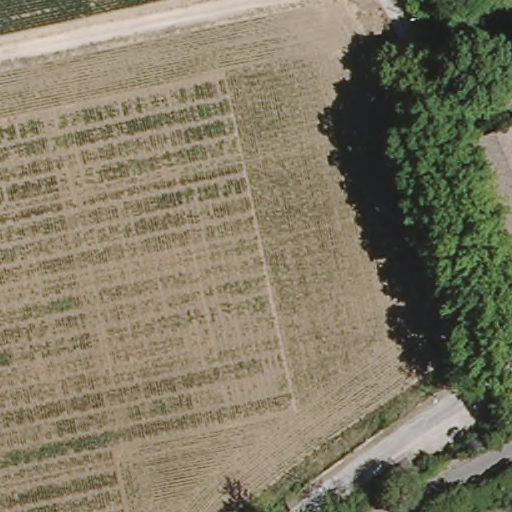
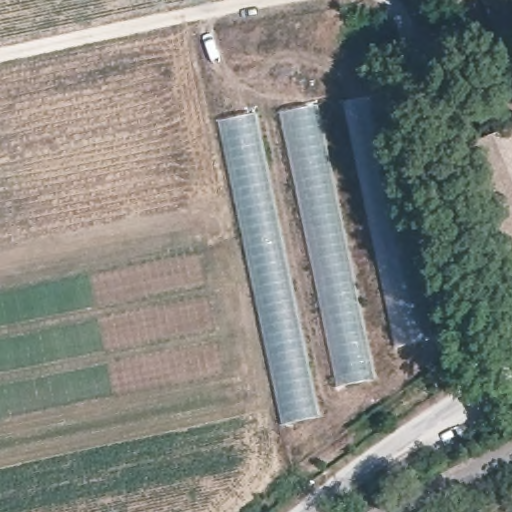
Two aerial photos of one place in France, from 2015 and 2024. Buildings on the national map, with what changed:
new [(380,97),(437,340),(397,347),(345,101),(380,97)]
new [(318,106),(378,379),(336,387),(279,112),(318,106)]
new [(257,114),(320,418),(283,426),(219,120),(257,114)]
unchanged [(512,132),(512,271),(465,151),(512,132)]

